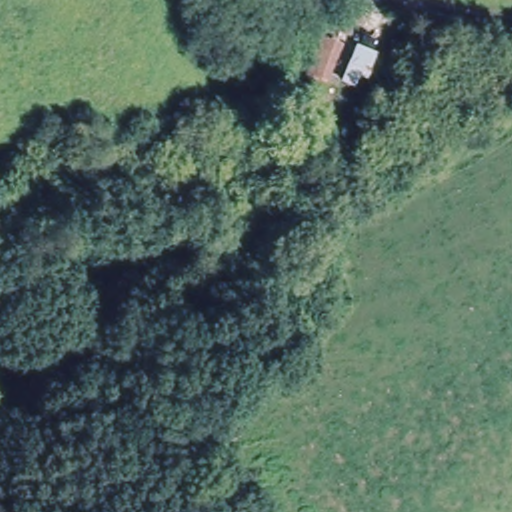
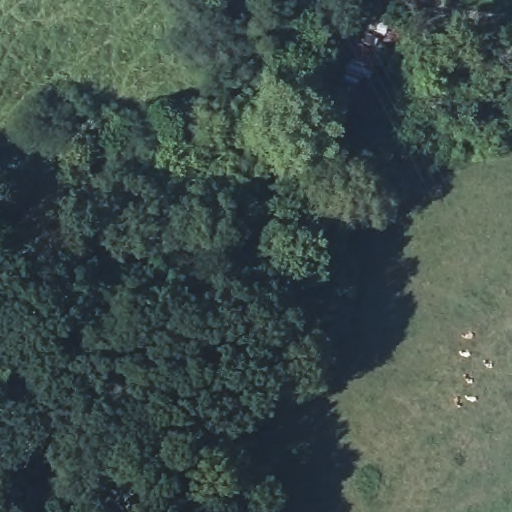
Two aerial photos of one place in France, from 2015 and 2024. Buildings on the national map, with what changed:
unchanged [(305,75),(320,35),(344,44),(330,81),(329,84),(328,83),(305,75)]
unchanged [(359,44),(379,51),(362,94),(342,86),(359,44)]

